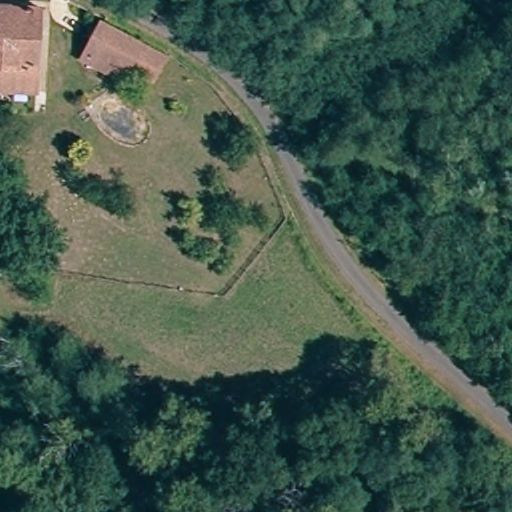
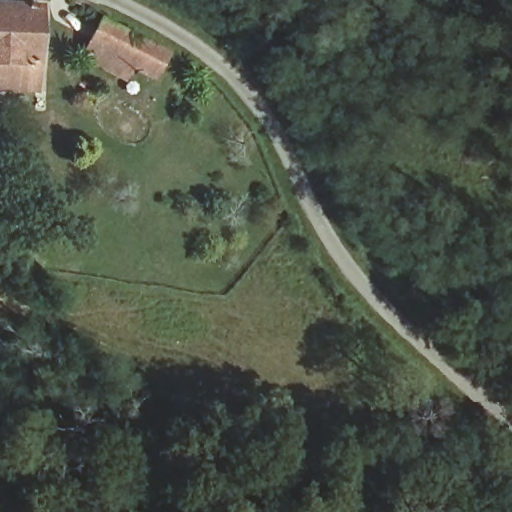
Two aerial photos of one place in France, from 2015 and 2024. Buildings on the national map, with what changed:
unchanged [(0,93),(0,0),(35,0),(35,94),(0,93)]
unchanged [(165,53),(151,80),(133,68),(121,85),(79,58),(99,27),(90,21),(98,11),(119,21),(165,53)]

